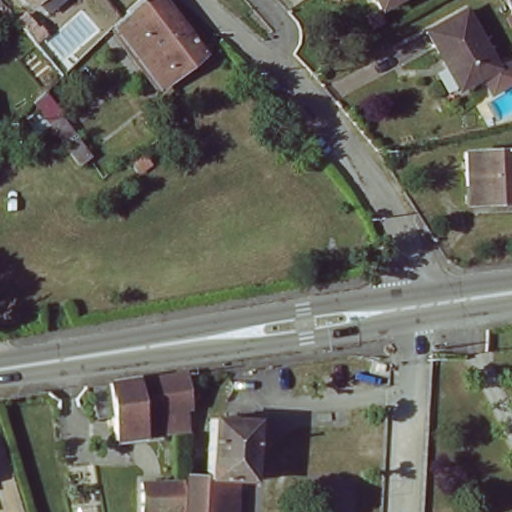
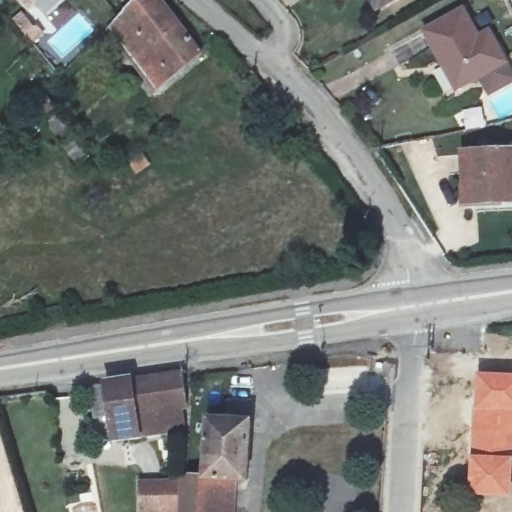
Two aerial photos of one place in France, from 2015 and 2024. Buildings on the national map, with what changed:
unchanged [(30,0),(49,0),(38,9),(30,0)]
unchanged [(111,28),(124,16),(140,0),(160,0),(204,53),(176,76),(161,88),(139,62),(111,28)]
unchanged [(376,0),(404,0),(383,12),(376,0)]
unchanged [(467,14),(499,69),(462,91),(430,35),(467,14)]
unchanged [(512,148),(512,201),(466,204),(462,152),(512,148)]
new [(473,408),(477,372),(512,375),(512,497),(468,495),(473,408)]
unchanged [(183,375),(190,409),(185,410),(185,428),(117,440),(113,414),(101,416),(98,388),(183,375)]
unchanged [(181,476),(201,477),(205,420),(248,423),(245,480),(233,479),(231,512),(179,512),(181,476)]
unchanged [(181,476),(179,512),(142,512),(141,476),(181,476)]

